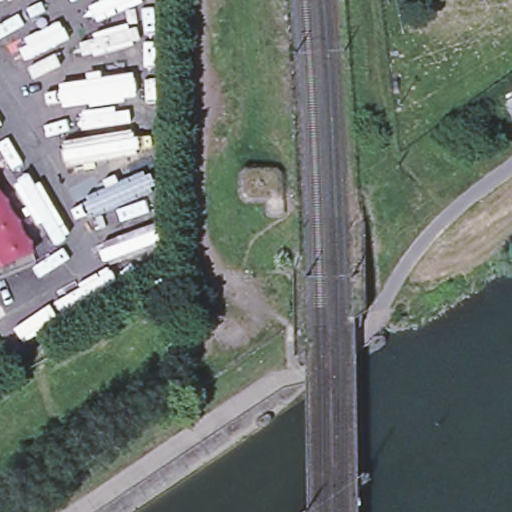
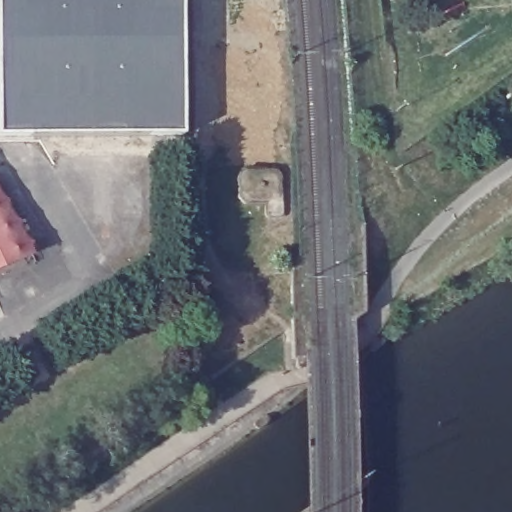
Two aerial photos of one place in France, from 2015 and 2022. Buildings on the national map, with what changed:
new [(180,132),(0,135),(0,0),(181,0),(180,132)]
unchanged [(287,174),(287,212),(282,216),(273,217),(267,212),(267,203),(249,203),(242,195),(242,173),(249,168),(277,167),(287,174)]
new [(36,254),(0,269),(0,191),(36,254)]

